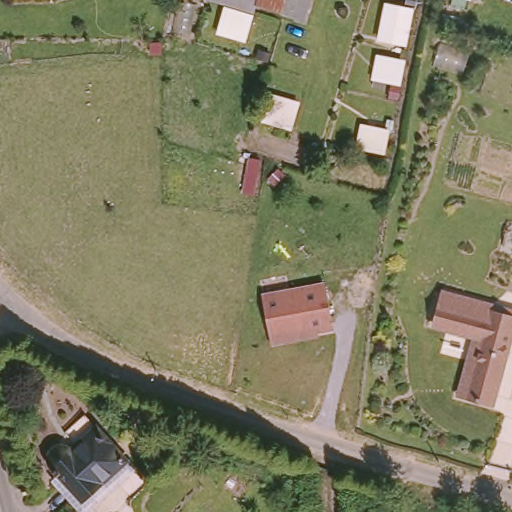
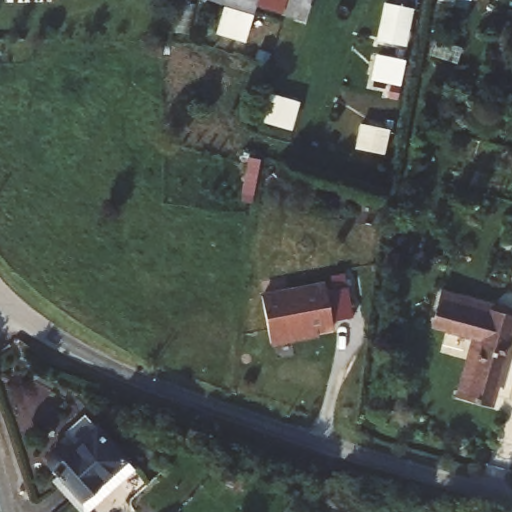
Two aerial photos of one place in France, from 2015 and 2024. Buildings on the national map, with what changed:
unchanged [(307,18),(260,5),(259,10),(225,0),(313,0),(307,18)]
unchanged [(383,2),(414,10),(407,49),(376,41),(383,2)]
unchanged [(292,338),(268,342),(260,294),(323,283),(330,326),(315,329),(316,333),(292,338)]
unchanged [(430,330),(440,288),(512,308),(512,339),(494,408),(459,387),(470,340),(430,330)]
unchanged [(67,477),(63,473),(65,470),(63,468),(61,463),(61,455),(62,450),(65,448),(69,447),(74,446),(79,450),(105,428),(135,460),(141,468),(97,508),(93,512),(90,512),(62,481),(67,477)]

